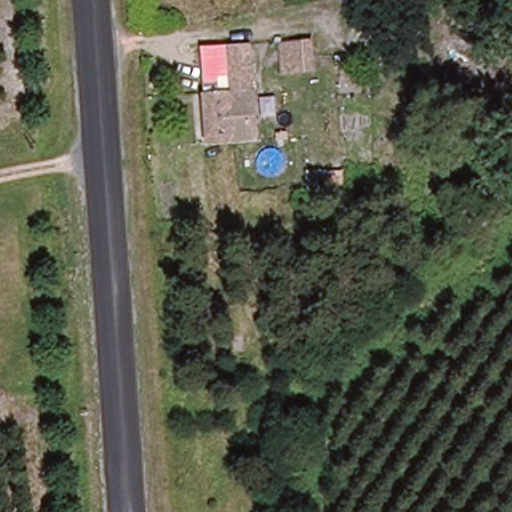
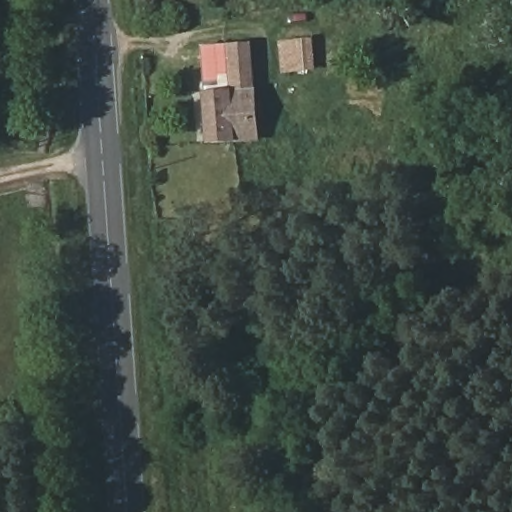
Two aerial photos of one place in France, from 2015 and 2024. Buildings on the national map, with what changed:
unchanged [(313,76),(288,77),(286,32),(310,31),(313,76)]
unchanged [(206,92),(233,90),(230,44),(253,43),(260,141),(210,145),(206,92)]

